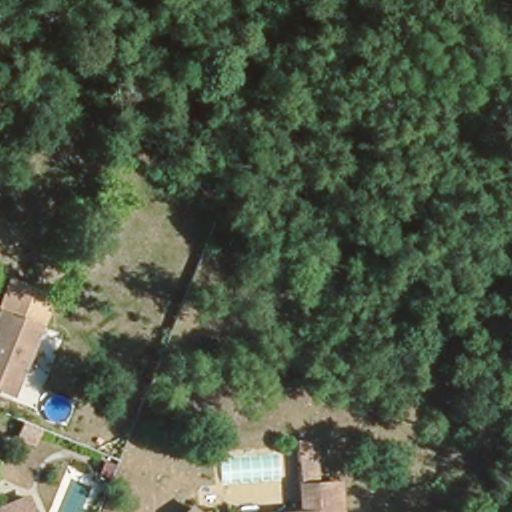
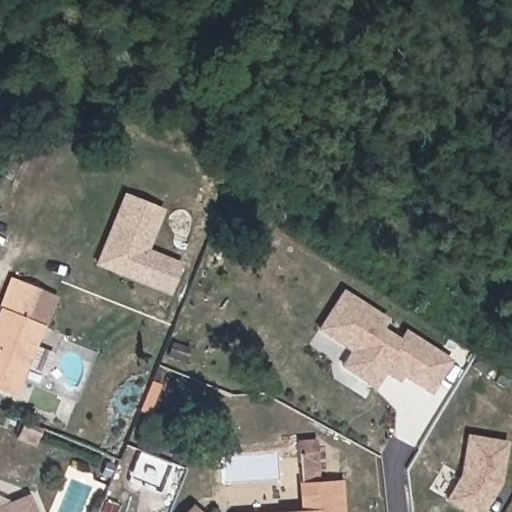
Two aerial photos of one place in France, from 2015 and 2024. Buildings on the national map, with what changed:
new [(146,249),(185,265),(172,297),(94,265),(122,192),(163,208),(146,249)]
new [(0,306),(10,278),(54,296),(39,328),(0,311),(0,306)]
new [(435,391),(406,374),(402,380),(395,375),(399,369),(392,365),(378,387),(346,367),(356,352),(322,331),(345,293),(388,320),(383,328),(403,341),(409,332),(454,360),(435,391)]
unchanged [(9,396),(0,392),(0,311),(39,328),(9,396)]
new [(399,369),(395,375),(388,371),(392,365),(399,369)]
new [(446,505),(457,476),(465,432),(505,440),(500,484),(481,512),(462,512),(446,505)]
unchanged [(290,511),(289,482),(286,441),(315,438),(317,480),(341,477),(343,512),(278,512),(290,511)]
unchanged [(33,512),(0,512),(0,507),(30,499),(33,512)]
unchanged [(190,502),(201,512),(180,512),(190,502)]

